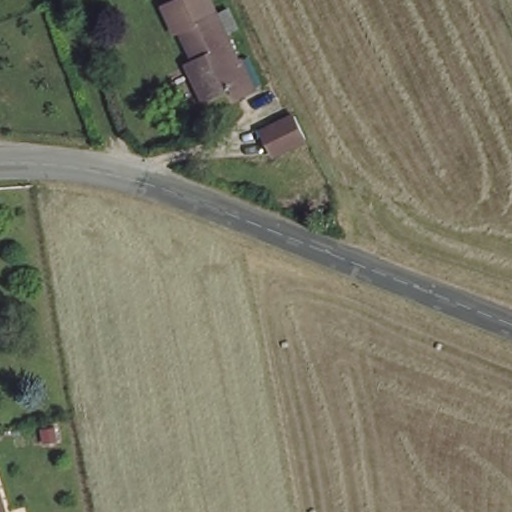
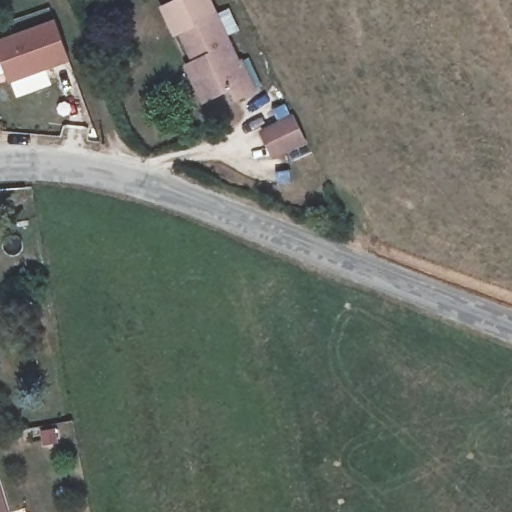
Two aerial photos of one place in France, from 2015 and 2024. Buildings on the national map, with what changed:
unchanged [(206,0),(237,63),(242,61),(255,89),(237,98),(230,86),(207,100),(192,70),(199,66),(170,11),(191,0),(206,0)]
new [(54,20),(67,58),(9,76),(0,51),(0,38),(54,20)]
unchanged [(273,159),(263,133),(295,118),(307,143),(273,159)]
unchanged [(10,509),(12,512),(0,512),(0,490),(10,509)]

